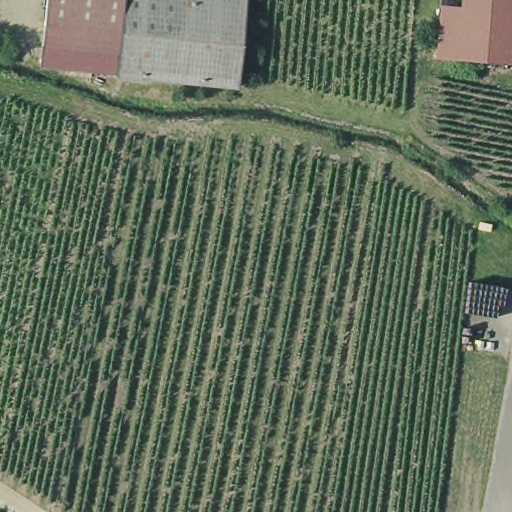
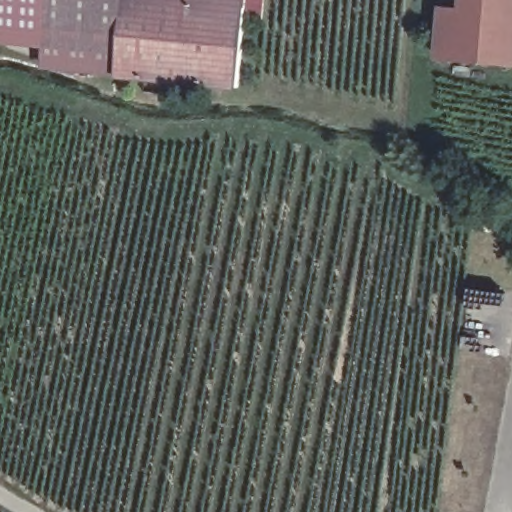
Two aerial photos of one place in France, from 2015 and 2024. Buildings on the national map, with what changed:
new [(50,26),(48,48),(0,44),(0,10),(1,0),(53,0),(50,26)]
unchanged [(50,26),(53,0),(129,0),(126,34),(50,26)]
unchanged [(129,0),(189,0),(182,75),(122,70),(126,34),(129,0)]
unchanged [(250,2),(244,80),(182,75),(189,0),(226,0),(250,2)]
unchanged [(250,2),(226,0),(251,0),(250,2)]
unchanged [(512,60),(449,54),(452,7),(473,9),(474,0),(512,0),(512,60)]
unchanged [(48,48),(50,26),(126,34),(122,70),(47,65),(48,48)]

